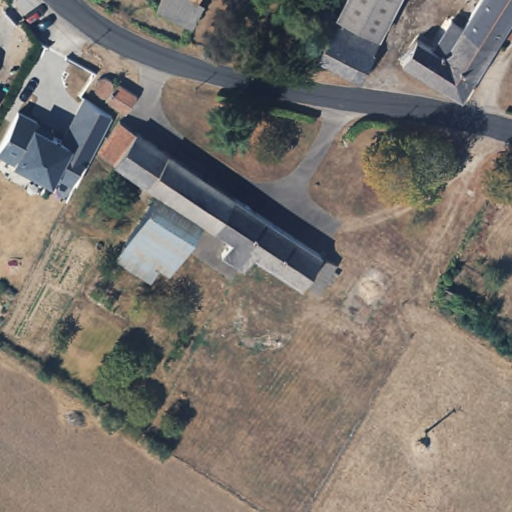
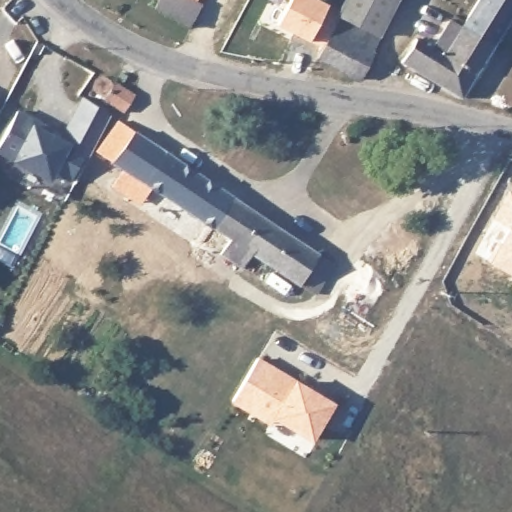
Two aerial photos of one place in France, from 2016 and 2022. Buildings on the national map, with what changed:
unchanged [(194,1),(197,4),(185,26),(151,9),(156,0),(191,0),(194,1)]
unchanged [(194,1),(191,0),(195,0),(194,1)]
new [(289,0),(320,0),(340,10),(343,12),(324,50),(276,25),(289,0)]
unchanged [(381,31),(386,35),(364,78),(320,57),(343,12),(340,10),(345,0),(398,0),(381,31)]
unchanged [(437,47),(442,37),(455,45),(465,27),(476,7),(480,0),(512,0),(512,17),(508,25),(497,44),(467,99),(406,66),(420,39),(437,47)]
unchanged [(115,80),(136,94),(124,112),(103,98),(105,95),(102,95),(100,95),(98,93),(96,91),(94,90),(93,86),(93,85),(94,81),(95,80),(96,77),(98,76),(101,75),(104,75),(106,76),(108,77),(110,79),(111,80),(112,83),(115,80)]
unchanged [(81,160),(70,180),(53,171),(49,178),(0,152),(0,143),(17,111),(35,121),(52,130),(50,134),(61,140),(83,97),(110,115),(85,162),(81,160)]
demolished [(241,106),(274,111),(268,133),(244,129),(240,137),(203,120),(211,102),(236,112),(241,106)]
unchanged [(320,295),(305,286),(199,220),(158,193),(101,150),(124,120),(326,255),(342,263),(320,295)]
unchanged [(199,220),(168,268),(127,240),(158,193),(199,220)]
new [(276,418),(273,425),(233,400),(257,358),(332,404),(311,440),(276,418)]

